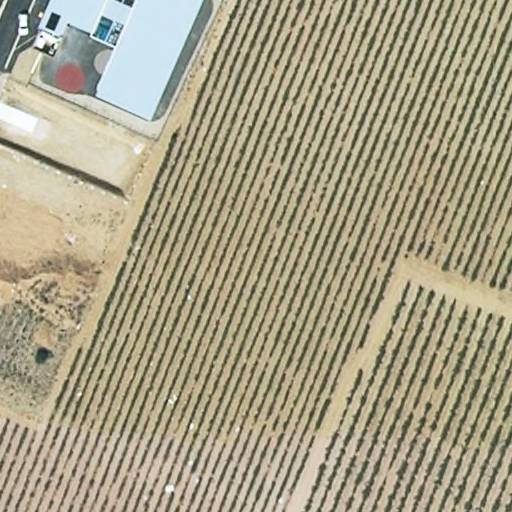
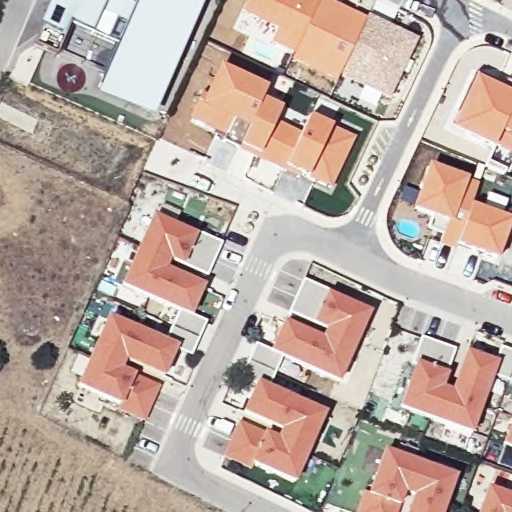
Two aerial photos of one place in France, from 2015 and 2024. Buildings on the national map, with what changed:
unchanged [(118,43),(92,32),(67,21),(60,36),(40,28),(53,0),(202,0),(152,119),(96,94),(118,43)]
new [(319,0),(292,54),(267,43),(274,30),(240,12),(246,0),(319,0)]
new [(319,0),(324,0),(365,19),(339,76),(337,81),(290,58),(292,54),(319,0)]
new [(376,0),(389,0),(399,5),(390,24),(419,39),(390,99),(380,96),(375,108),(357,100),(363,87),(339,76),(365,19),(376,0)]
new [(217,66),(267,90),(262,98),(236,148),(187,119),(217,66)]
new [(472,76),(512,95),(512,103),(494,149),(447,129),(472,76)]
new [(262,98),(282,106),(257,158),(236,148),(262,98)]
new [(512,103),(512,155),(494,149),(512,103)]
new [(282,106),(307,116),(283,170),(257,158),(282,106)]
new [(307,116),(356,136),(331,190),(283,170),(307,116)]
new [(427,165),(478,185),(470,204),(470,206),(459,201),(447,225),(445,224),(443,226),(409,209),(427,165)]
new [(443,226),(445,224),(447,225),(459,201),(470,206),(470,204),(482,208),(487,194),(507,202),(501,216),(511,220),(497,262),(437,243),(443,226)]
new [(142,423),(114,412),(117,406),(74,387),(105,317),(162,342),(175,313),(117,287),(150,216),(194,236),(195,232),(220,244),(205,276),(180,266),(167,262),(165,269),(202,286),(191,313),(203,322),(188,356),(175,351),(161,380),(122,363),(119,369),(134,375),(159,387),(142,423)]
new [(300,281),(327,292),(327,295),(370,313),(337,385),(279,360),(267,387),(325,415),(292,485),(250,466),(247,470),(220,459),(236,423),(261,433),(274,439),(277,431),(241,413),(254,385),(239,378),(254,345),(269,351),(282,322),(320,338),(322,330),(310,325),(287,312),(300,281)]
new [(445,376),(441,388),(449,391),(464,353),(493,362),(497,348),(512,353),(512,383),(490,376),(469,435),(397,409),(412,365),(409,363),(420,338),(452,349),(445,376)]
new [(500,446),(512,412),(512,451),(500,446)]
new [(410,496),(402,494),(397,508),(395,512),(355,512),(361,493),(366,495),(382,450),(454,476),(442,512),(405,512),(410,496)]
new [(485,488),(512,498),(512,512),(476,512),(485,488)]

